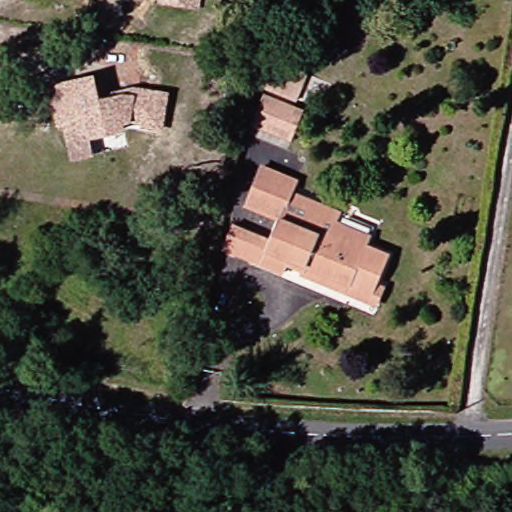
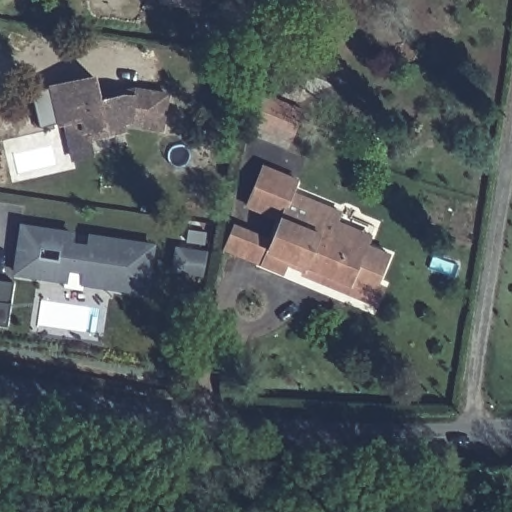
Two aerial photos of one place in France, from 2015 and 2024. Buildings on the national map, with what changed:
unchanged [(165,2),(166,0),(201,0),(200,7),(165,2)]
new [(278,62),(307,74),(296,101),(267,89),(278,62)]
unchanged [(78,159),(74,139),(70,122),(65,124),(56,87),(98,78),(104,101),(128,96),(138,98),(139,90),(172,94),(167,129),(150,126),(150,124),(132,121),(126,122),(128,129),(98,136),(96,129),(90,130),(89,130),(95,155),(78,159)]
unchanged [(246,123),(259,94),(297,110),(285,139),(246,123)]
unchanged [(283,264),(280,273),(258,264),(221,248),(231,225),(267,240),(276,219),(243,205),(259,166),(293,180),(288,192),(336,213),(332,222),(367,237),(363,246),(385,255),(369,294),(346,284),(344,289),(300,270),(283,264)]
new [(73,241),(86,244),(88,233),(155,244),(148,295),(80,285),(81,274),(69,272),(68,283),(13,275),(20,223),(75,231),(73,241)]
new [(177,249),(207,254),(204,274),(174,269),(177,249)]
new [(14,282),(11,303),(8,325),(0,324),(0,279),(14,282)]

